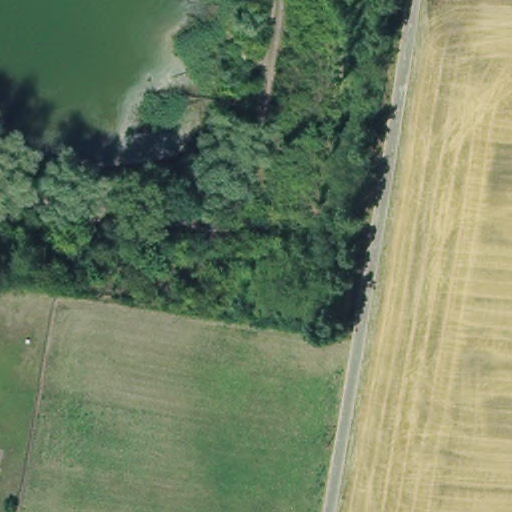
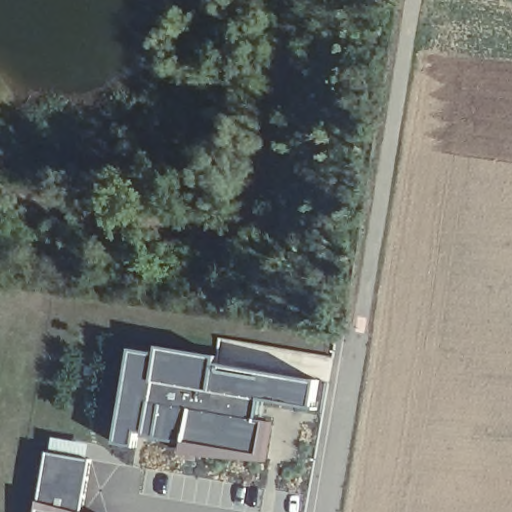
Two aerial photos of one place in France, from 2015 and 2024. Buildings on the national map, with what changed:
new [(265,401),(262,420),(272,422),(265,456),(146,435),(147,433),(139,432),(136,448),(120,445),(137,352),(160,356),(162,346),(219,356),(217,364),(316,382),(311,408),(265,401)]
new [(39,512),(49,452),(92,459),(83,512),(39,512)]

